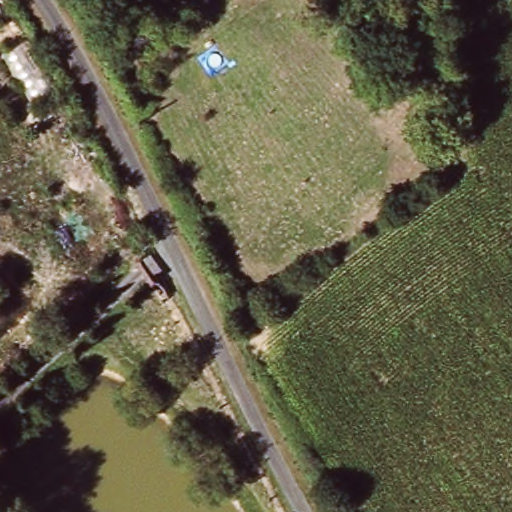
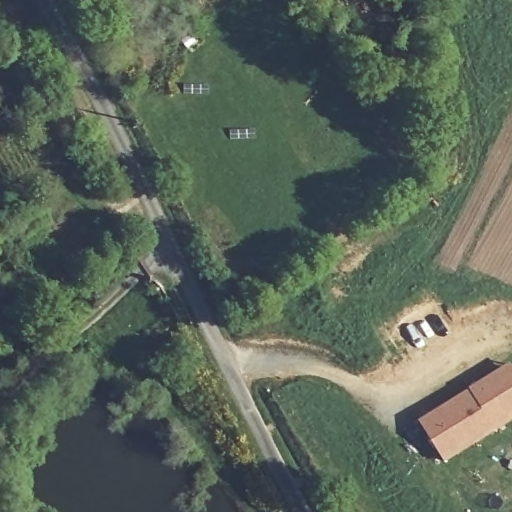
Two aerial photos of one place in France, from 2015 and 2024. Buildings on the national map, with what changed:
unchanged [(60,88),(36,100),(5,49),(25,34),(60,88)]
new [(468,387),(510,362),(512,366),(512,420),(445,462),(418,420),(469,388),(468,387)]

